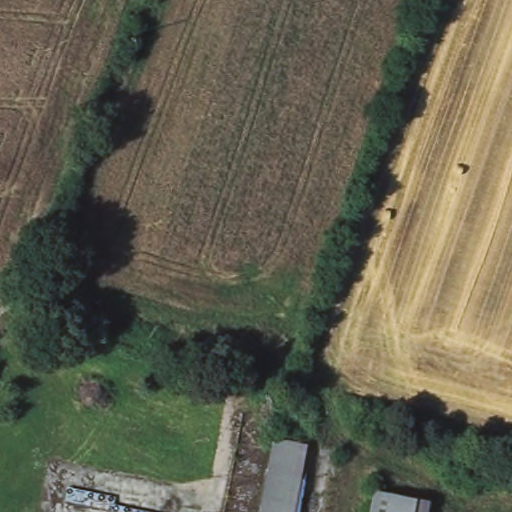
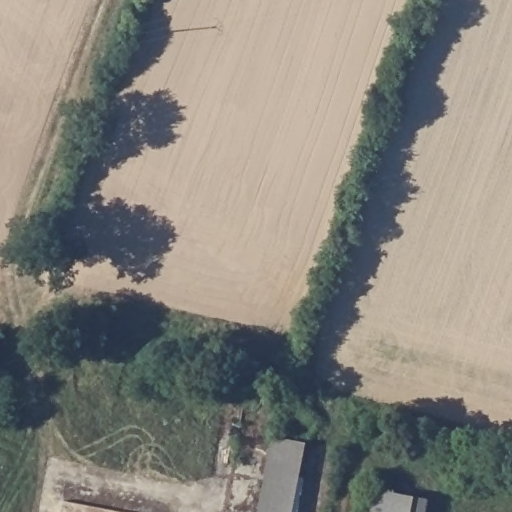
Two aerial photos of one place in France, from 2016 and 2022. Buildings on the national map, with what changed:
unchanged [(313,443),(320,444),(303,512),(269,512),(289,436),(313,443)]
unchanged [(433,512),(391,512),(395,495),(435,504),(433,512)]

